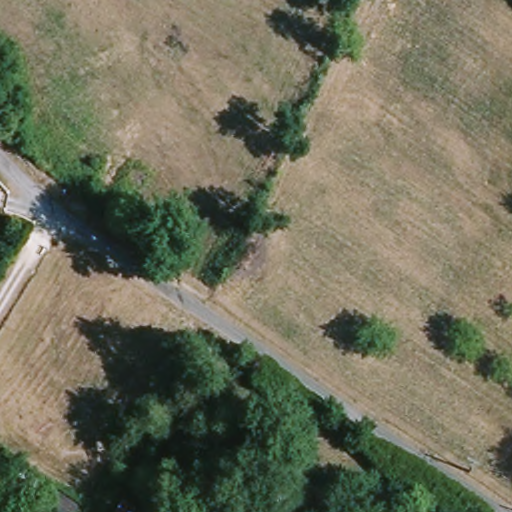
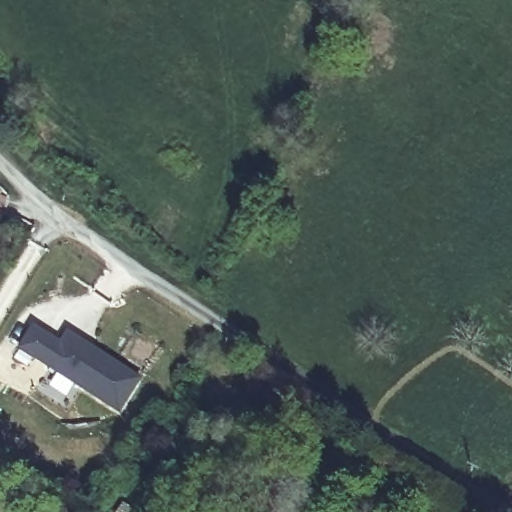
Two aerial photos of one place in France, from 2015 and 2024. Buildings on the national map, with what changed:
new [(142,377),(122,410),(49,366),(36,358),(22,349),(35,327),(50,336),(62,344),(70,332),(142,377)]

